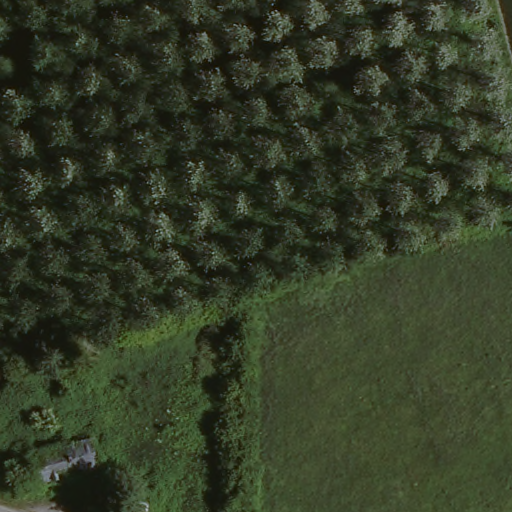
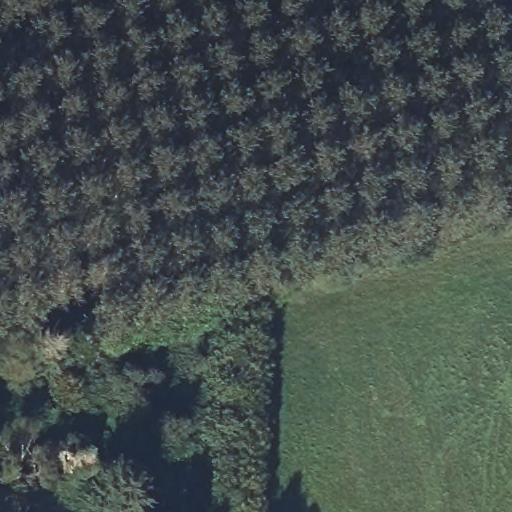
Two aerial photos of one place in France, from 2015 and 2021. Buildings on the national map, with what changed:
unchanged [(94,471),(20,492),(10,464),(84,443),(93,467),(94,471)]

